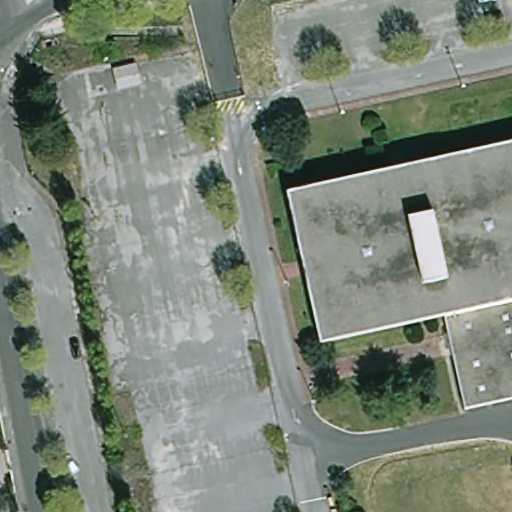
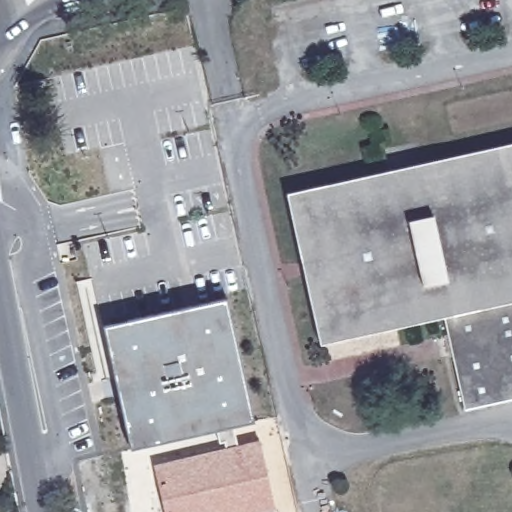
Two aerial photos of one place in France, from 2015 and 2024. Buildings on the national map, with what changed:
unchanged [(449,315),(323,342),(290,191),(512,143),(512,399),(468,409),(449,315)]
new [(226,300),(254,422),(234,426),(238,445),(260,440),(275,512),(164,512),(153,465),(225,447),(224,442),(219,444),(214,430),(131,448),(105,326),(226,300)]

